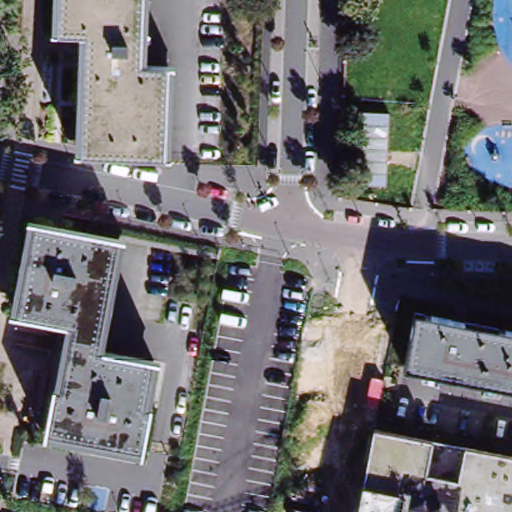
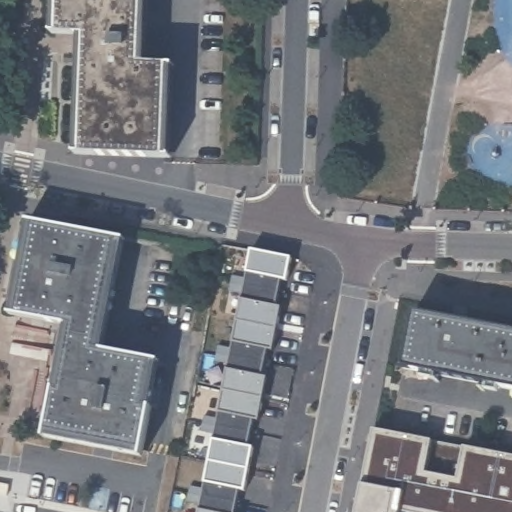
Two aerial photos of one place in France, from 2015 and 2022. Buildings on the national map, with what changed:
unchanged [(164,67),(160,158),(77,155),(81,35),(53,35),(54,0),(139,0),(136,66),(164,67)]
unchanged [(120,240),(100,342),(74,337),(75,327),(16,316),(34,225),(120,240)]
new [(293,260),(293,262),(254,254),(254,251),(293,260)]
new [(265,256),(253,255),(254,254),(265,256)]
new [(265,256),(293,262),(289,281),(284,280),(281,293),(234,284),(235,276),(248,279),(253,255),(254,255),(265,256)]
new [(280,330),(240,322),(245,294),(232,291),(234,284),(281,293),(278,307),(284,308),(280,330)]
unchanged [(512,333),(512,389),(405,368),(416,314),(512,333)]
new [(267,364),(219,355),(220,347),(234,350),(240,322),(280,330),(275,352),(270,351),(267,364)]
unchanged [(62,391),(69,361),(62,360),(65,348),(71,350),(74,337),(100,342),(99,351),(155,362),(145,408),(150,409),(142,450),(48,432),(54,403),(56,390),(62,391)]
new [(265,400),(225,392),(231,365),(217,362),(219,355),(267,364),(265,377),(270,378),(265,400)]
new [(253,435),(205,425),(206,417),(220,420),(225,392),(265,400),(260,422),(255,421),(253,435)]
new [(189,503),(190,496),(192,488),(205,491),(206,485),(211,463),(216,435),(204,433),(205,425),(253,435),(250,448),(255,450),(251,471),(246,492),(246,493),(241,492),(239,505),(237,512),(201,512),(202,506),(189,503)]
unchanged [(512,456),(512,512),(358,512),(374,428),(512,456)]

